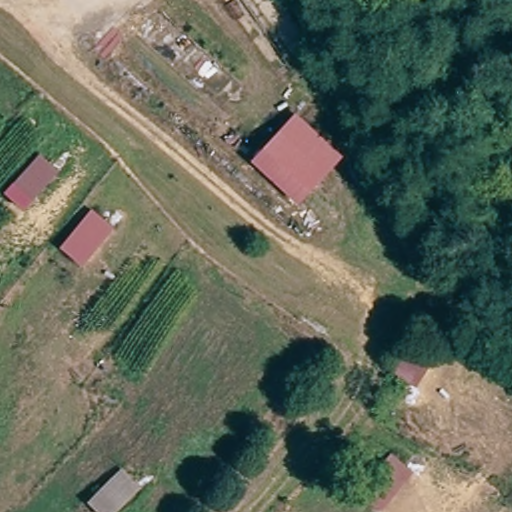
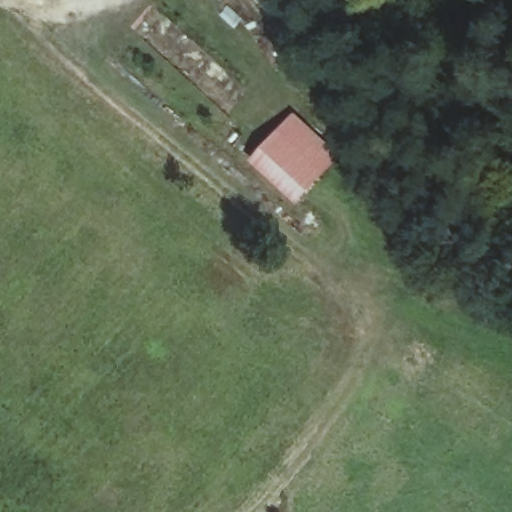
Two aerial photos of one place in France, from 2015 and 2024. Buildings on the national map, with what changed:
unchanged [(288,114),(339,156),(303,202),(254,160),(288,114)]
demolished [(37,153),(61,172),(27,213),(2,195),(37,153)]
demolished [(92,209),(115,227),(82,268),(61,248),(92,209)]
unchanged [(417,370),(396,357),(415,332),(437,344),(417,370)]
demolished [(358,493),(392,454),(414,472),(382,511),(358,493)]
demolished [(143,490),(118,512),(96,512),(85,503),(122,468),(143,490)]

